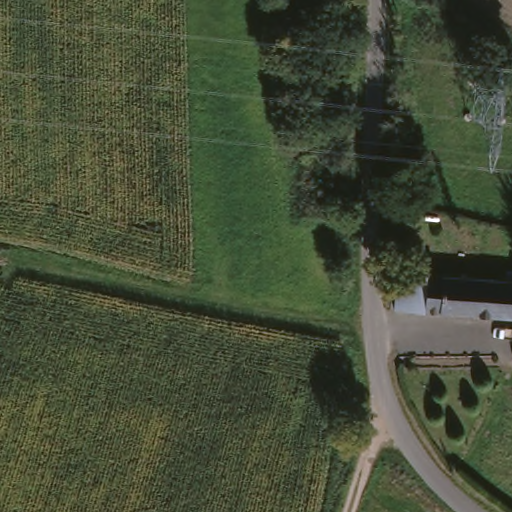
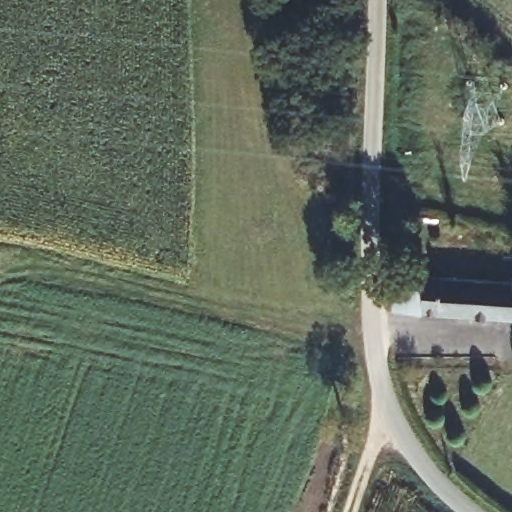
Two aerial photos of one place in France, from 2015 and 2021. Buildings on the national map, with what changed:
unchanged [(429,278),(428,315),(393,313),(394,277),(429,278)]
unchanged [(428,315),(429,278),(512,280),(512,318),(428,315)]

